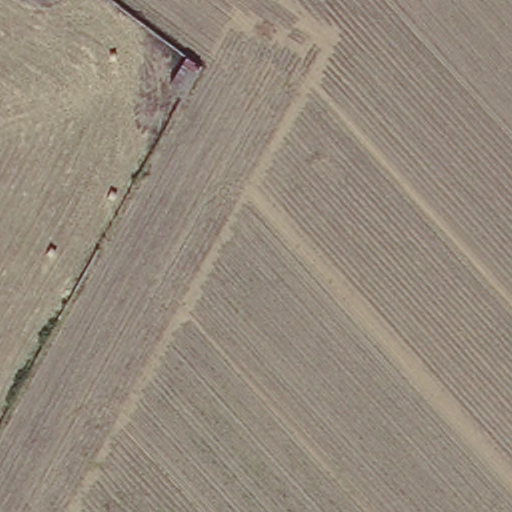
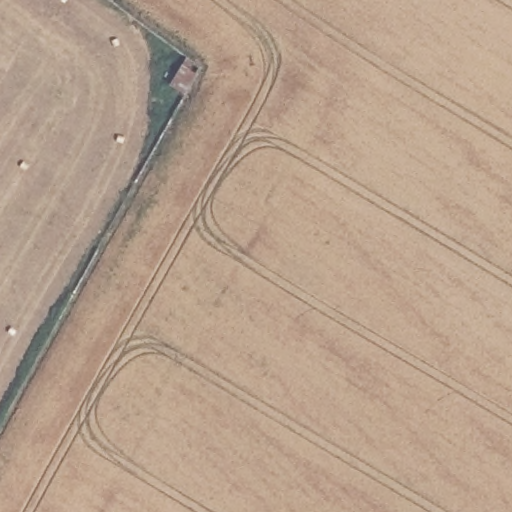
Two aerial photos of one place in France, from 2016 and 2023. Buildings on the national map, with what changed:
unchanged [(172,81),(187,52),(204,62),(187,89),(172,81)]

